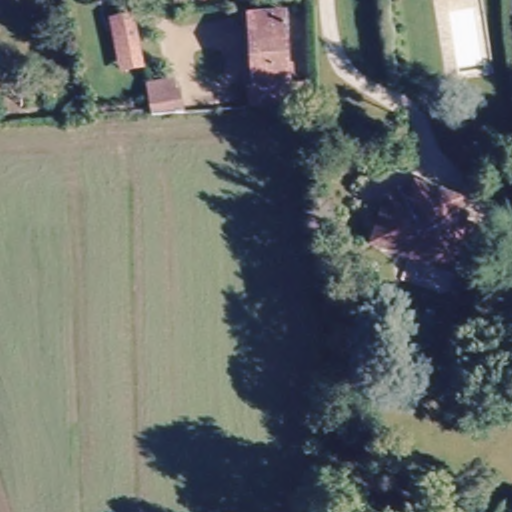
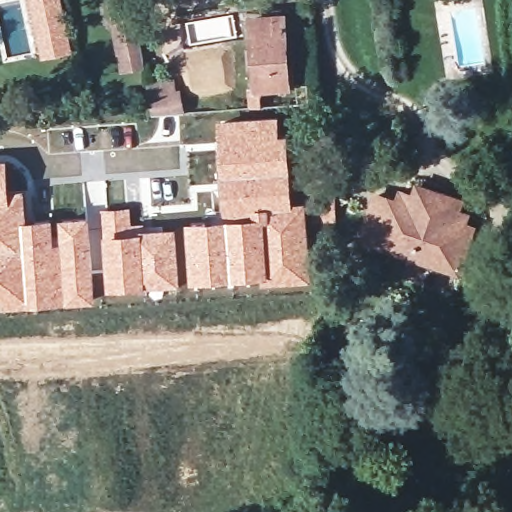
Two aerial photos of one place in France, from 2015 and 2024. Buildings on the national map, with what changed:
new [(73,51),(39,59),(27,0),(61,0),(73,51)]
unchanged [(131,2),(132,10),(139,46),(119,50),(110,6),(131,2)]
unchanged [(298,105),(249,110),(243,87),(256,82),(248,10),(285,11),(298,105)]
unchanged [(172,81),(175,93),(180,92),(184,113),(153,115),(147,85),(172,81)]
new [(223,216),(218,119),(280,114),(282,132),(289,131),(294,202),(308,201),(312,279),(272,280),(272,275),(190,280),(186,220),(223,216)]
new [(11,186),(26,186),(28,220),(90,215),(97,299),(1,304),(1,300),(0,301),(0,157),(10,156),(11,186)]
unchanged [(457,214),(469,218),(466,227),(476,231),(461,275),(376,246),(390,204),(400,206),(403,197),(416,201),(420,190),(460,204),(457,214)]
new [(131,206),(134,228),(178,225),(182,283),(107,289),(101,209),(131,206)]

